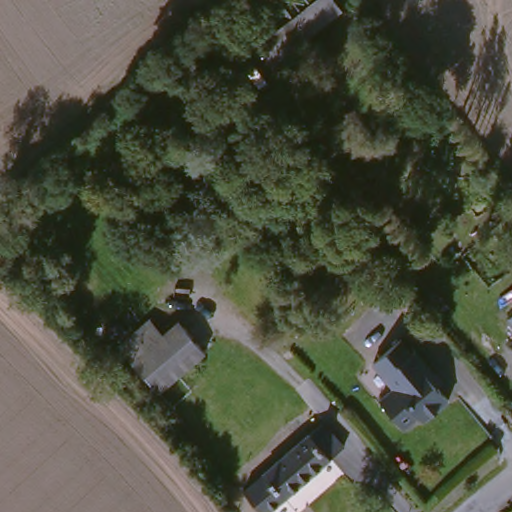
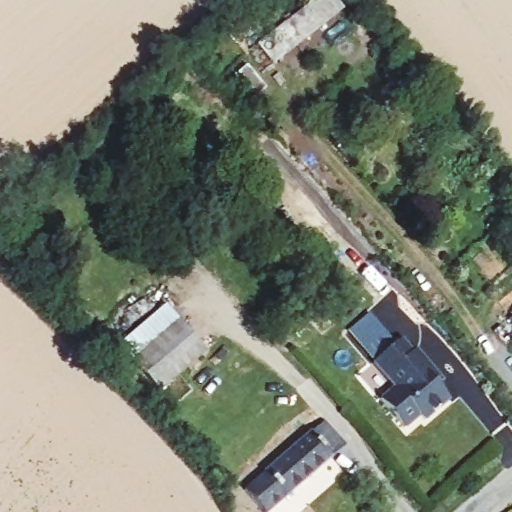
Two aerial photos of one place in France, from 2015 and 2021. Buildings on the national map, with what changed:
unchanged [(314,0),(342,0),(347,5),(279,62),(261,45),(314,0)]
unchanged [(211,348),(164,387),(136,356),(126,345),(156,321),(164,331),(183,316),(211,348)]
unchanged [(444,395),(402,435),(371,406),(388,392),(367,372),(393,347),(444,395)]
unchanged [(327,416),(349,440),(273,510),(251,485),(327,416)]

